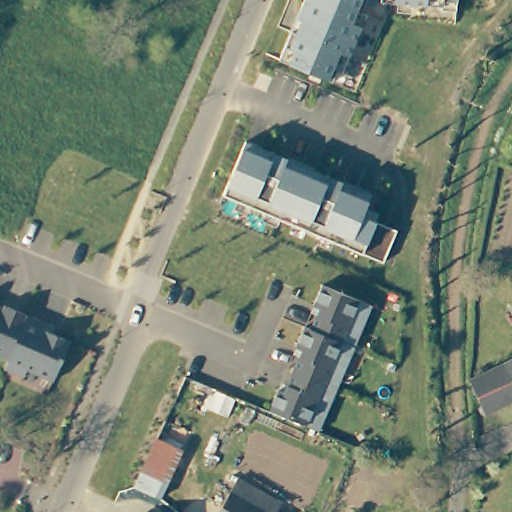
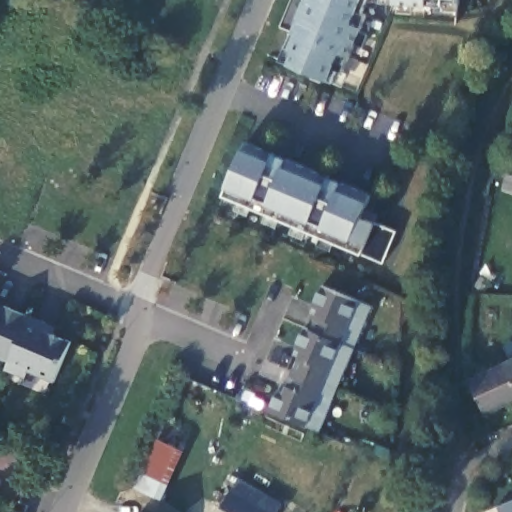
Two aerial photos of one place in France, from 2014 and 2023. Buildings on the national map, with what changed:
unchanged [(361,11),(337,68),(332,66),(327,79),(324,78),(316,75),(314,79),(303,74),(305,70),(274,57),(298,0),(360,0),(356,9),(361,11)]
unchanged [(399,0),(438,0),(438,2),(399,0)]
unchanged [(240,139),(366,191),(357,212),(392,226),(378,258),(218,192),(240,139)]
unchanged [(275,387),(280,389),(289,367),(297,347),(292,344),(300,323),(306,326),(306,325),(314,305),(308,302),(317,281),(367,301),(350,343),(333,385),(316,427),(280,413),(266,408),(275,387)]
unchanged [(16,309),(0,349),(0,303),(16,309)]
unchanged [(59,335),(44,373),(17,363),(13,372),(0,366),(0,349),(16,309),(34,317),(31,323),(59,335)]
unchanged [(512,362),(512,378),(506,365),(512,362)]
unchanged [(474,378),(506,365),(512,378),(512,400),(489,411),(474,378)]
unchanged [(174,455),(160,488),(135,477),(150,445),(174,455)]
unchanged [(238,484),(255,493),(281,506),(279,512),(223,512),(238,484)]
new [(512,512),(499,512),(497,505),(512,500),(512,512)]

